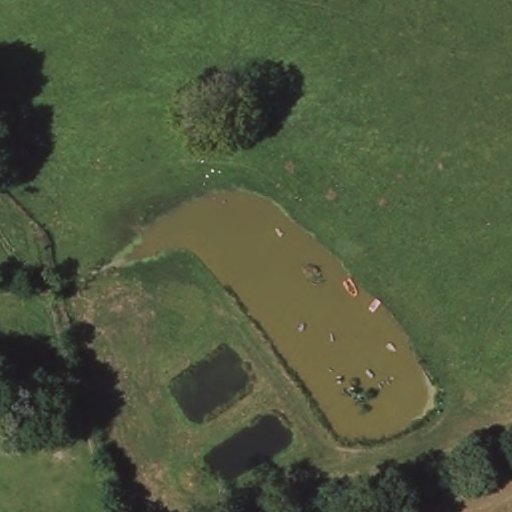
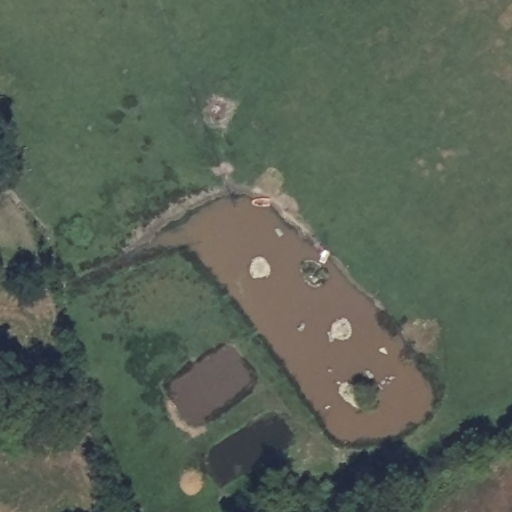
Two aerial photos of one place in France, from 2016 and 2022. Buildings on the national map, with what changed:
[]

